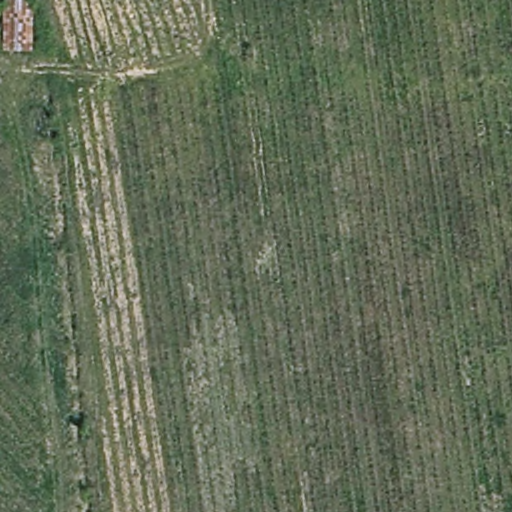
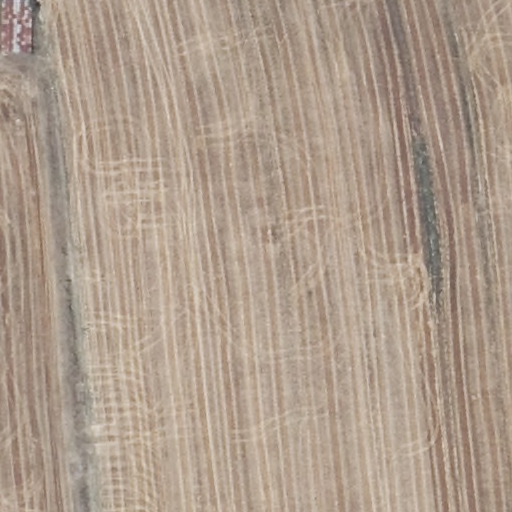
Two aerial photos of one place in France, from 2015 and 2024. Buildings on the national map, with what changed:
unchanged [(36,46),(5,49),(1,0),(32,0),(36,46)]

